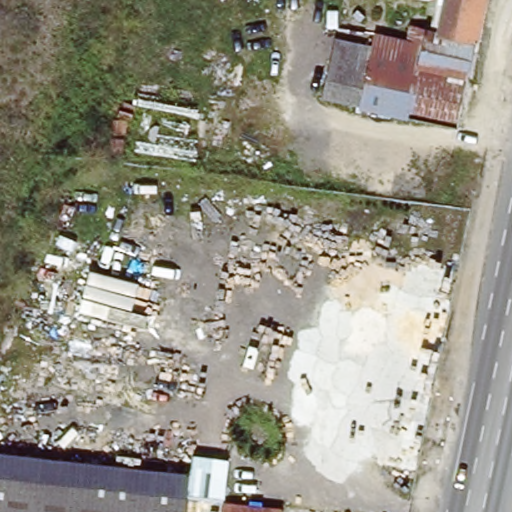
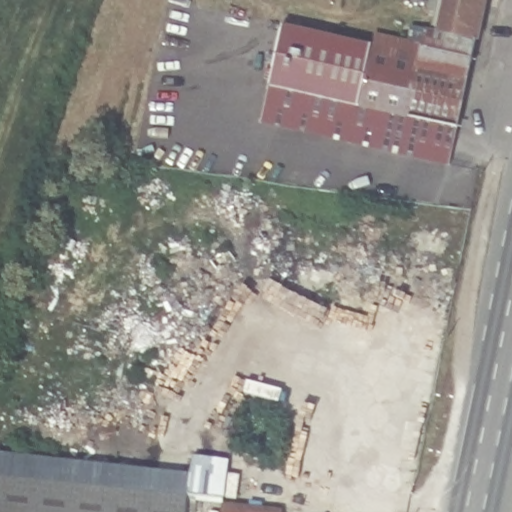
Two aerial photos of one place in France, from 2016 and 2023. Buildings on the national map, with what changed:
unchanged [(462,130),(410,119),(425,44),(427,32),(436,34),(441,6),(413,0),(488,0),(462,130)]
new [(450,167),(259,125),(269,87),(283,25),(371,44),(374,32),(383,35),(380,50),(340,42),(329,102),(370,111),(413,120),(458,129),(450,167)]
unchanged [(380,50),(383,35),(425,44),(410,119),(370,111),(380,50)]
unchanged [(340,42),(380,50),(370,111),(329,102),(340,42)]
unchanged [(187,469),(185,489),(185,494),(0,470),(0,448),(187,469)]
unchanged [(182,512),(0,512),(0,470),(185,494),(182,512)]
unchanged [(217,512),(218,503),(281,510),(281,512),(217,512)]

